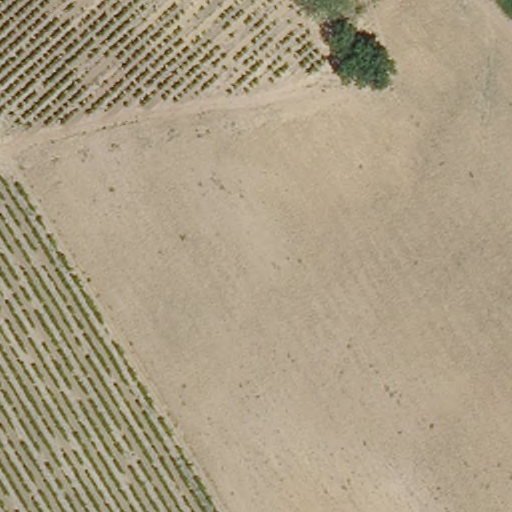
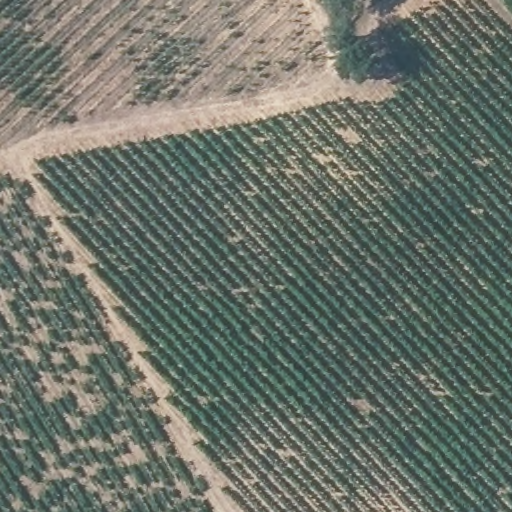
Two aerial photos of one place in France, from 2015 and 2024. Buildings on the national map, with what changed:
[]

